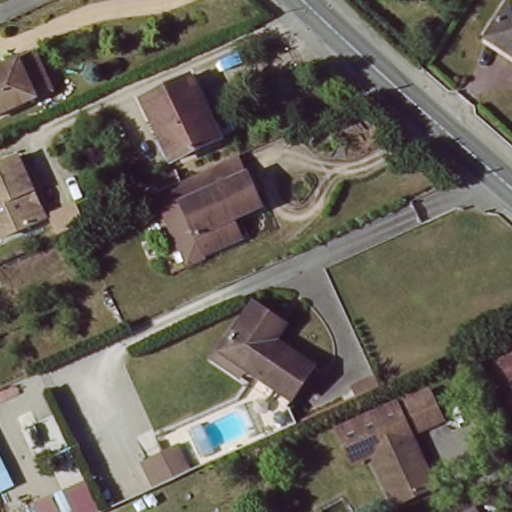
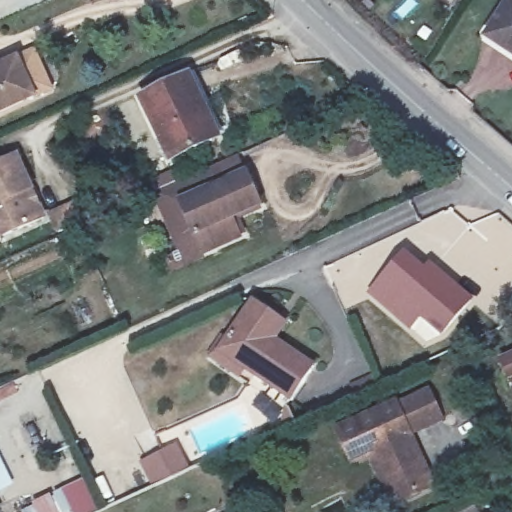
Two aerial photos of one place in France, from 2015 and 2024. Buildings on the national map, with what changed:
unchanged [(512,48),(494,37),(512,6),(512,48)]
unchanged [(21,57),(36,52),(51,87),(36,93),(0,108),(0,65),(21,57)]
unchanged [(196,74),(212,111),(205,114),(216,139),(173,157),(147,94),(196,74)]
unchanged [(178,204),(200,255),(183,261),(155,196),(161,192),(156,181),(175,171),(181,183),(240,158),(248,173),(241,176),(178,204)]
unchanged [(53,223),(11,240),(0,214),(0,171),(27,160),(53,223)]
unchanged [(254,207),(227,220),(236,240),(200,255),(178,204),(241,176),(254,207)]
new [(405,251),(425,267),(430,262),(474,300),(442,337),(423,320),(412,332),(368,295),(405,251)]
unchanged [(217,357),(231,336),(237,340),(264,302),(283,315),(294,322),(283,340),(321,368),(298,401),(253,368),(247,378),(217,357)]
unchanged [(512,385),(501,361),(512,356),(512,385)]
unchanged [(338,428),(402,401),(405,407),(435,392),(449,418),(414,434),(436,485),(398,502),(377,456),(355,466),(338,428)]
unchanged [(159,487),(145,463),(183,445),(195,469),(159,487)]
new [(15,485),(0,492),(0,456),(15,485)]
unchanged [(74,494),(81,512),(40,512),(74,494)]

